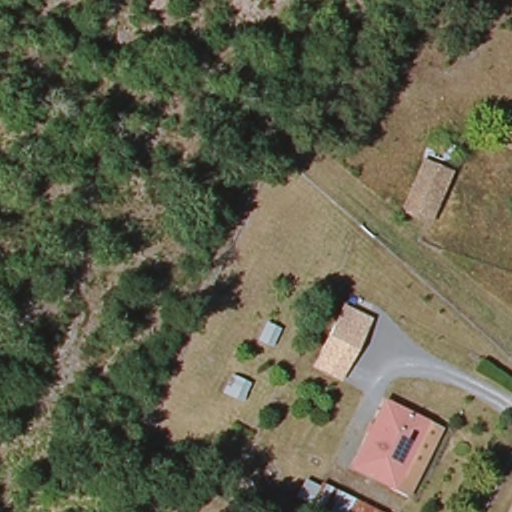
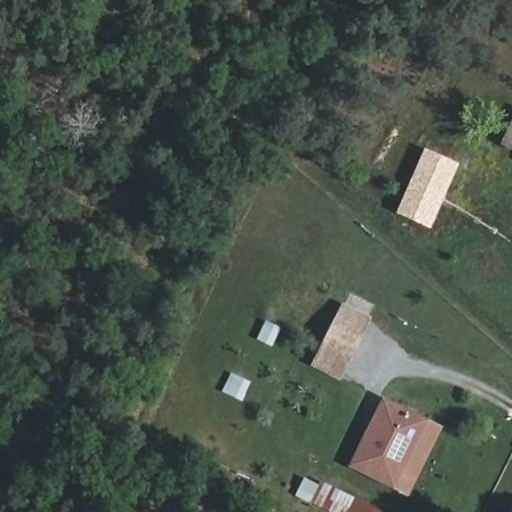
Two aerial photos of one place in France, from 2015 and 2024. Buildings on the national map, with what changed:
unchanged [(501,151),(512,127),(512,156),(501,151)]
unchanged [(432,139),(457,151),(431,227),(399,214),(432,139)]
unchanged [(310,367),(344,304),(372,319),(339,381),(310,367)]
unchanged [(429,421),(427,425),(439,432),(422,470),(409,496),(394,491),(350,472),(384,401),(429,421)]
unchanged [(325,488),(375,512),(315,512),(325,488)]

